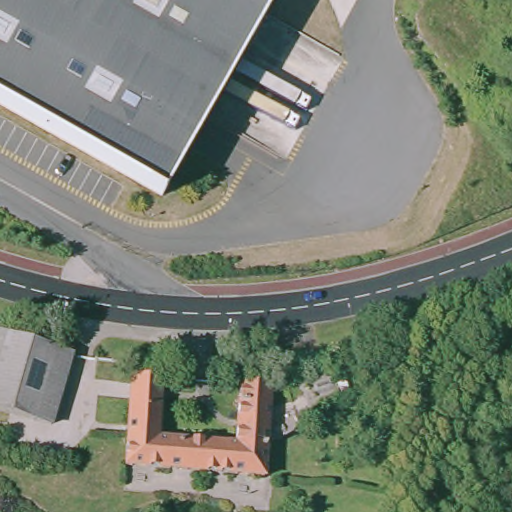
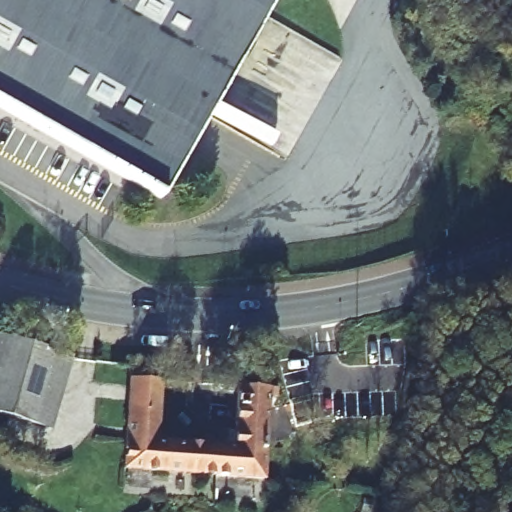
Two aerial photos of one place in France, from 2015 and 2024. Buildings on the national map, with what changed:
unchanged [(160,198),(0,107),(0,0),(272,0),(160,198)]
unchanged [(0,413),(0,336),(67,356),(46,427),(0,413)]
unchanged [(128,377),(157,381),(155,425),(176,428),(176,440),(231,444),(236,385),(268,386),(260,478),(191,473),(172,471),(120,467),(119,463),(110,462),(100,461),(99,446),(118,448),(121,409),(102,408),(105,363),(129,365),(128,377)]

